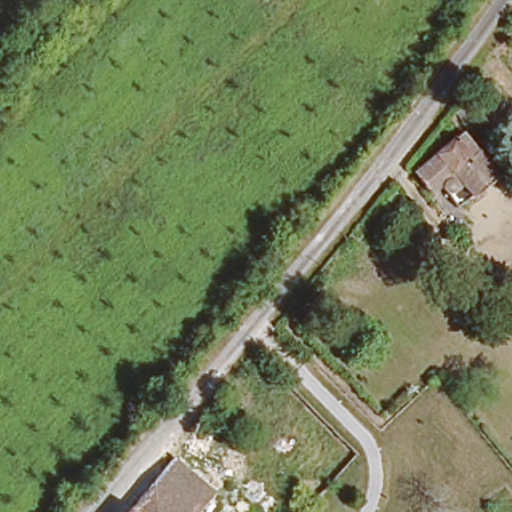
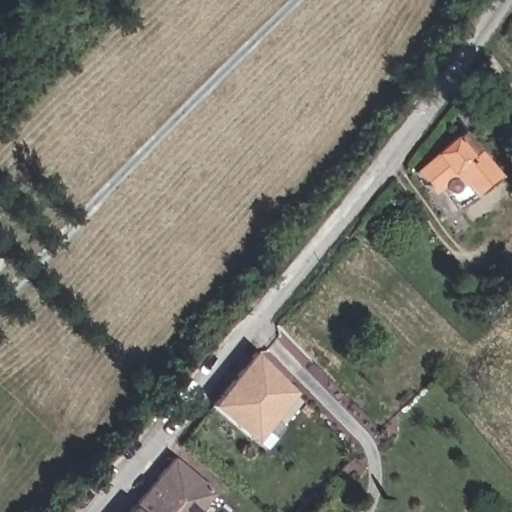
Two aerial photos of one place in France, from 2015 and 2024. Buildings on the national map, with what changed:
unchanged [(483,96),(504,122),(491,132),(469,105),(483,96)]
unchanged [(463,125),(505,177),(490,190),(498,199),(491,206),(486,202),(478,207),(448,172),(437,179),(422,162),(463,125)]
new [(252,441),(211,406),(253,353),(292,392),(252,441)]
unchanged [(171,448),(218,487),(197,512),(122,512),(171,448)]

